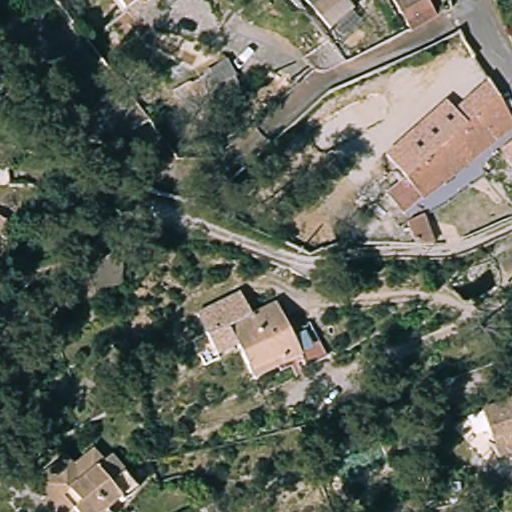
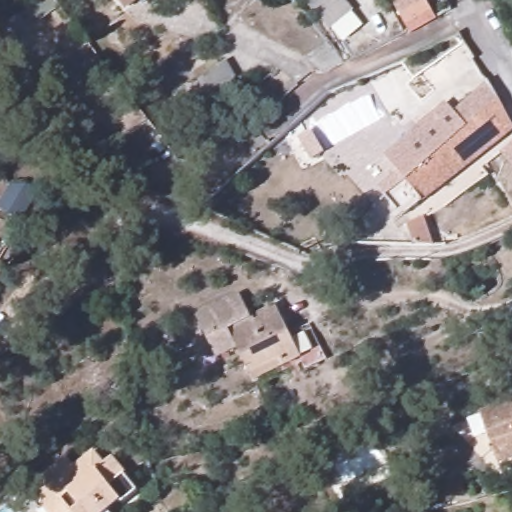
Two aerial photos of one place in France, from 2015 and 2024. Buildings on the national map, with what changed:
unchanged [(113,0),(139,0),(123,13),(113,0)]
unchanged [(310,0),(354,0),(321,29),(302,7),(310,0)]
unchanged [(413,31),(396,0),(429,0),(438,16),(413,31)]
unchanged [(169,94),(222,57),(248,85),(184,122),(169,94)]
unchanged [(382,183),(402,168),(387,152),(452,95),(460,105),(486,81),(490,87),(497,105),(512,127),(512,132),(510,134),(512,136),(412,216),(395,197),(382,183)]
unchanged [(512,155),(512,180),(500,165),(512,155)]
unchanged [(410,220),(430,211),(440,241),(419,240),(410,220)]
unchanged [(3,222),(2,224),(7,226),(10,228),(2,241),(0,240),(0,220),(3,222)]
unchanged [(239,298),(251,322),(278,309),(291,337),(311,328),(326,362),(305,372),(300,361),(254,383),(240,353),(218,363),(196,319),(239,298)]
unchanged [(479,413),(510,402),(505,390),(512,387),(512,461),(497,465),(479,413)]
unchanged [(26,485),(53,462),(61,471),(89,448),(98,459),(106,453),(133,486),(119,498),(115,494),(103,505),(108,512),(49,512),(26,485)]

